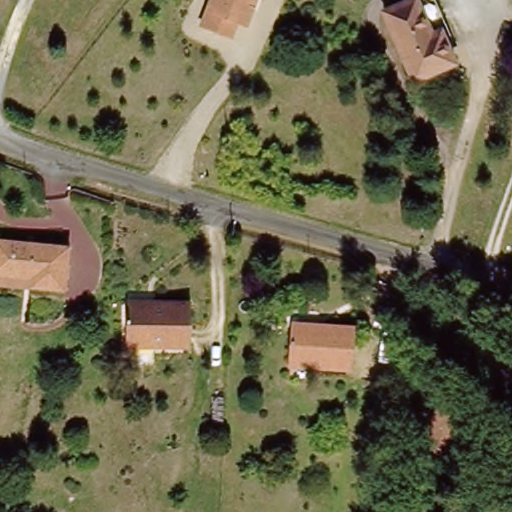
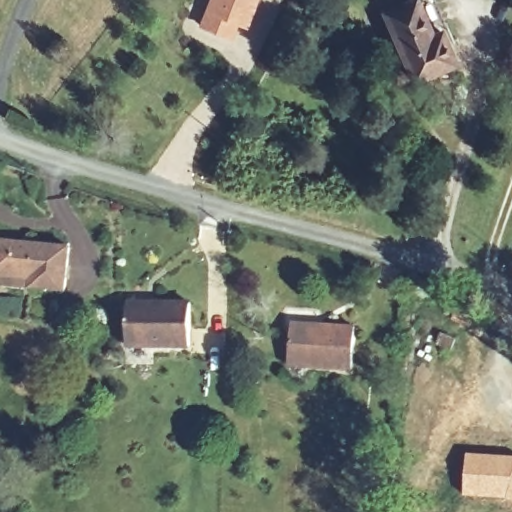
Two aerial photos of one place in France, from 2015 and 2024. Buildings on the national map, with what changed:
unchanged [(242,24),(238,39),(207,28),(218,0),(263,0),(258,11),(255,29),(242,24)]
unchanged [(410,8),(427,0),(433,0),(450,34),(435,41),(427,45),(410,8)]
unchanged [(435,41),(450,72),(410,91),(378,22),(410,8),(427,45),(435,41)]
unchanged [(0,275),(0,242),(67,244),(66,288),(31,287),(32,275),(0,275)]
unchanged [(430,300),(431,278),(453,280),(451,301),(430,300)]
unchanged [(127,348),(128,305),(187,305),(193,305),(192,349),(186,349),(127,348)]
unchanged [(285,366),(287,328),(315,328),(317,324),(352,326),(350,369),(285,366)]
demolished [(461,416),(451,451),(430,446),(440,410),(461,416)]
new [(465,494),(468,452),(512,455),(512,500),(507,497),(465,494)]

